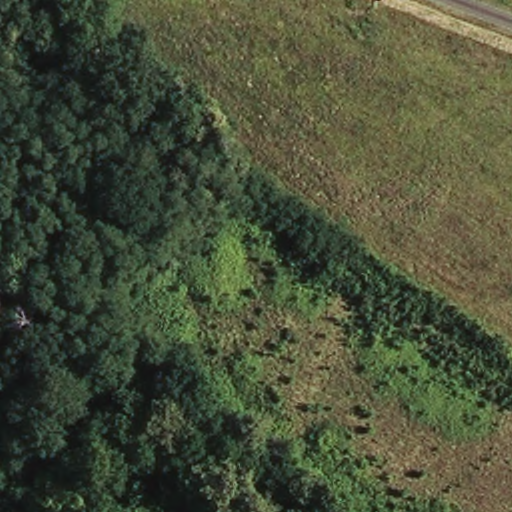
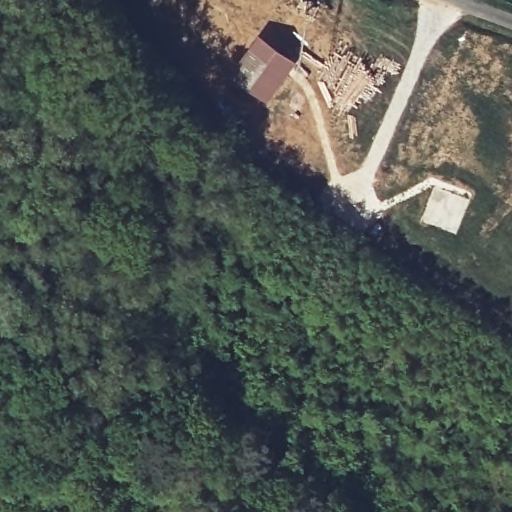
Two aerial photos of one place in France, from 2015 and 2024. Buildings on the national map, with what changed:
new [(257,34),(296,62),(265,102),(227,75),(257,34)]

